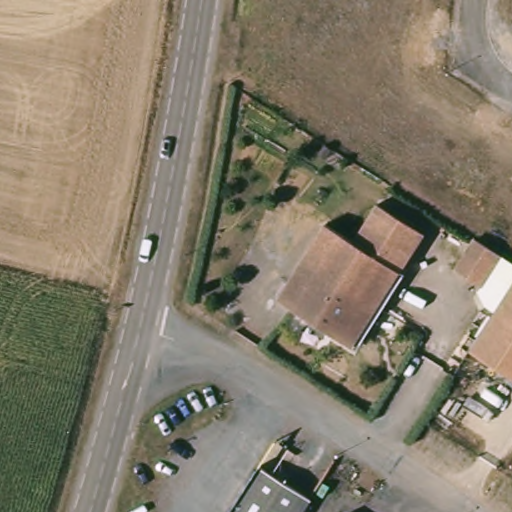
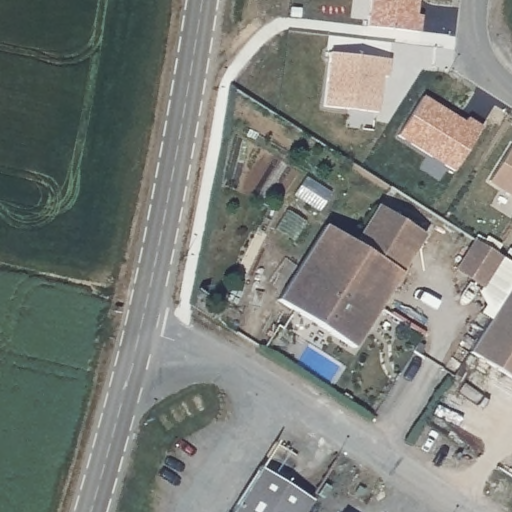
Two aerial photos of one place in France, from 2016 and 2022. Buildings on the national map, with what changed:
new [(417,0),(416,13),(421,14),(419,31),(366,24),(369,0),(417,0)]
new [(328,51),(389,58),(387,75),(381,75),(377,110),(322,104),(328,51)]
new [(422,95),(464,121),(467,116),(482,125),(453,169),(397,134),(422,95)]
new [(512,142),(512,194),(488,178),(512,142)]
unchanged [(324,225),(352,242),(376,204),(422,234),(398,271),(382,298),(307,252),(324,225)]
unchanged [(500,254),(481,284),(455,267),(474,237),(500,254)]
unchanged [(382,298),(350,347),(276,300),(307,252),(382,298)]
unchanged [(512,278),(512,377),(467,349),(512,278)]
unchanged [(310,498),(302,512),(233,512),(260,468),(310,498)]

